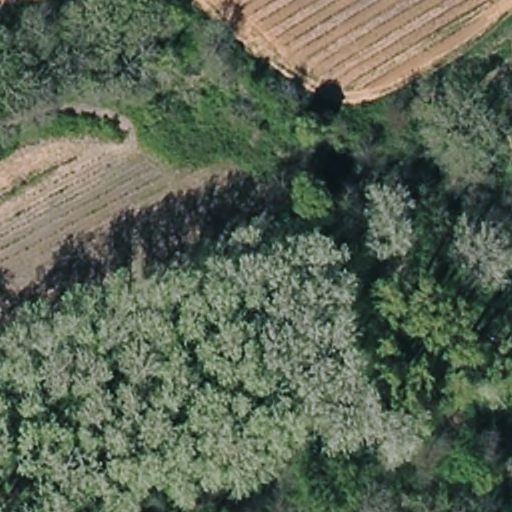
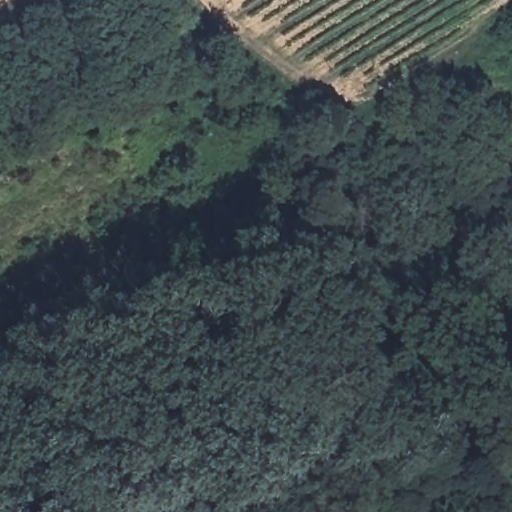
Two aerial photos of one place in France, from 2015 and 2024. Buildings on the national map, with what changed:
unchanged [(140,94),(110,101),(106,83),(135,77),(140,94)]

